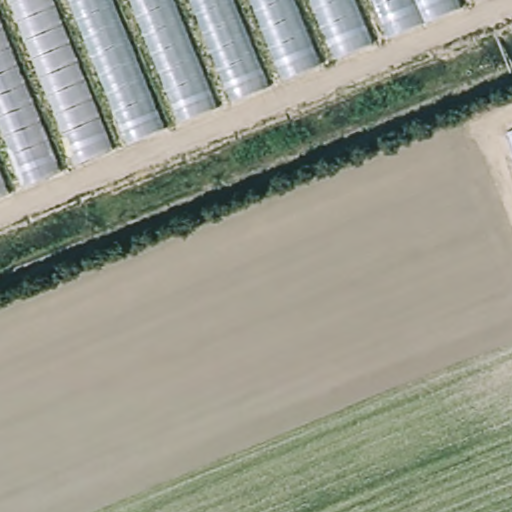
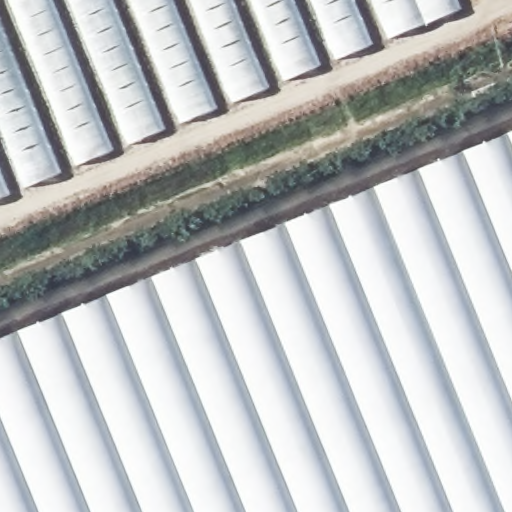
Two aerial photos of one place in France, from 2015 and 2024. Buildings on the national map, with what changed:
unchanged [(0,0),(456,0),(459,6),(0,194),(0,0)]
unchanged [(507,135),(512,132),(512,147),(507,135)]
new [(0,338),(507,135),(512,147),(512,512),(0,512),(0,338)]

